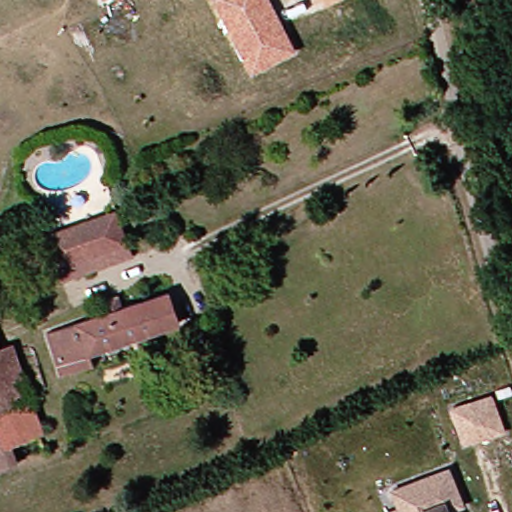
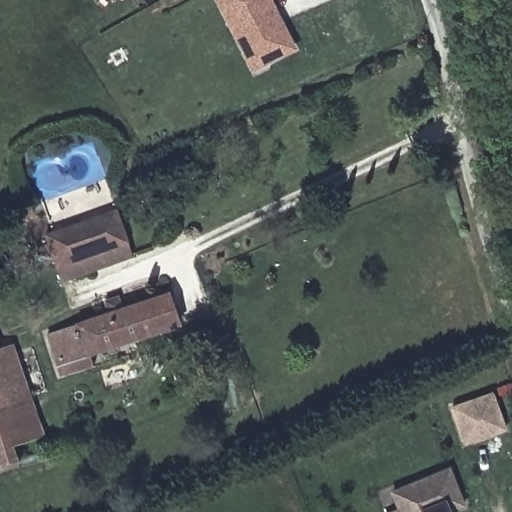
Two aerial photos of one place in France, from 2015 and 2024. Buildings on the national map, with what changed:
unchanged [(98,0),(110,0),(101,5),(98,0)]
unchanged [(214,0),(272,0),(295,48),(251,74),(214,0)]
unchanged [(96,276),(64,287),(45,240),(121,208),(139,262),(96,276)]
unchanged [(184,321),(92,355),(96,367),(66,378),(51,332),(174,290),(184,321)]
unchanged [(4,352),(0,353),(0,340),(4,352)]
unchanged [(4,352),(18,348),(38,401),(0,416),(0,353),(4,352)]
unchanged [(493,395),(506,430),(467,445),(453,410),(493,395)]
unchanged [(50,436),(16,448),(20,472),(0,478),(0,416),(38,401),(50,436)]
unchanged [(400,509),(394,491),(452,470),(464,507),(450,512),(392,512),(400,509)]

